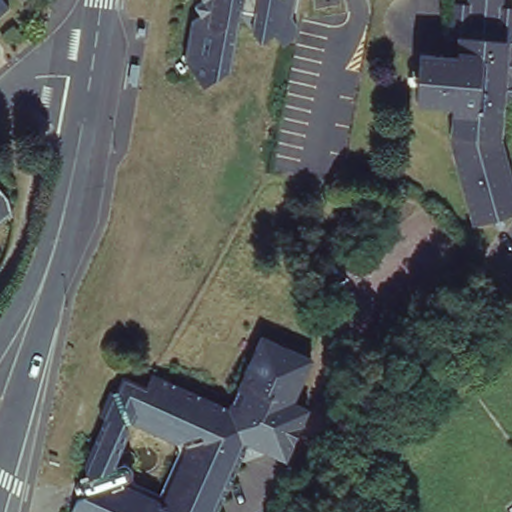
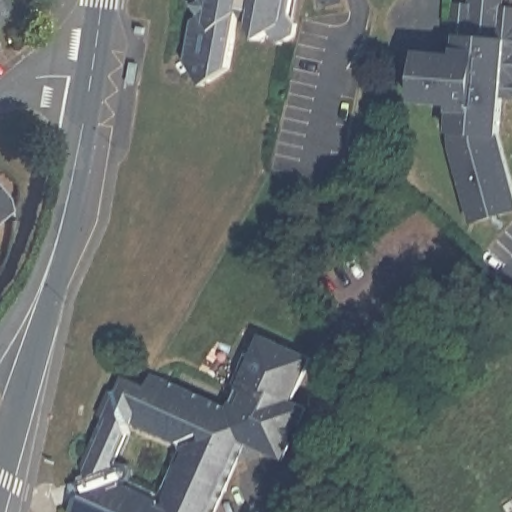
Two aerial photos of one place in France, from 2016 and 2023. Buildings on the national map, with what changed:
unchanged [(7,0),(9,3),(0,10),(0,0),(7,0)]
unchanged [(199,81),(184,60),(191,21),(200,15),(194,6),(203,0),(293,0),(290,15),(296,24),(295,35),(290,39),(277,39),(272,31),(259,41),(239,12),(229,69),(208,83),(199,81)]
unchanged [(511,99),(496,98),(493,137),(512,203),(512,211),(469,224),(448,149),(446,133),(448,104),(411,101),(415,54),(452,58),(453,39),(443,39),(445,21),(448,21),(449,4),(465,5),(465,0),(496,0),(495,9),(510,9),(509,26),(512,26),(512,98),(511,98),(511,99)]
unchanged [(135,71),(138,45),(144,46),(141,72),(135,71)]
unchanged [(8,199),(11,211),(0,220),(0,190),(8,199)]
unchanged [(367,441),(512,331),(512,357),(379,458),(367,441)]
unchanged [(238,390),(261,337),(311,359),(291,402),(304,408),(300,418),(238,390)]
unchanged [(379,458),(512,357),(512,512),(420,512),(379,458)]
unchanged [(86,493),(81,494),(81,493),(76,494),(73,486),(77,484),(77,483),(81,481),(80,479),(79,480),(78,478),(87,474),(83,465),(90,462),(88,455),(105,418),(99,415),(110,392),(118,388),(123,377),(146,387),(152,375),(229,409),(238,390),(300,418),(282,458),(262,449),(260,452),(243,459),(240,457),(216,512),(70,512),(75,499),(86,494),(86,493)]

